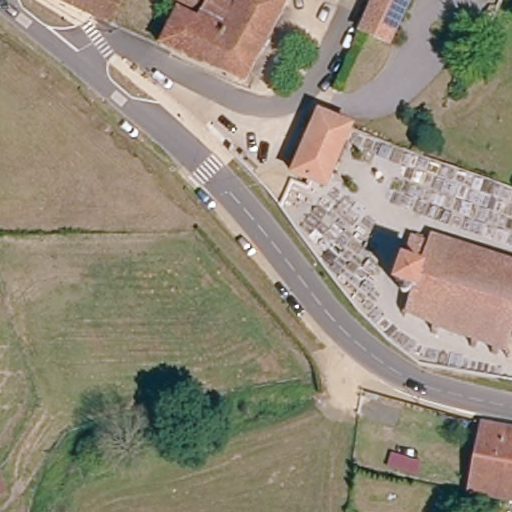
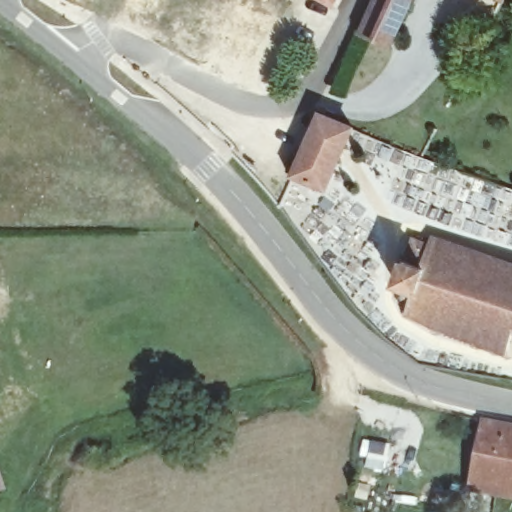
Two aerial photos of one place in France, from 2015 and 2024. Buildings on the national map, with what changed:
demolished [(73,0),(133,0),(121,24),(73,0)]
demolished [(179,13),(198,22),(201,15),(173,0),(286,0),(246,84),(161,44),(179,13)]
unchanged [(332,0),(336,0),(335,1),(332,0)]
unchanged [(374,26),(385,1),(386,0),(416,0),(394,44),(370,33),(374,26)]
unchanged [(321,114),(358,130),(355,135),(327,190),(293,174),(321,114)]
unchanged [(512,266),(512,329),(508,327),(500,348),(405,312),(415,287),(403,290),(402,280),(395,277),(410,239),(432,247),(435,239),(512,266)]
unchanged [(479,498),(484,425),(512,429),(512,502),(479,498)]
unchanged [(0,494),(0,472),(10,490),(0,494)]

